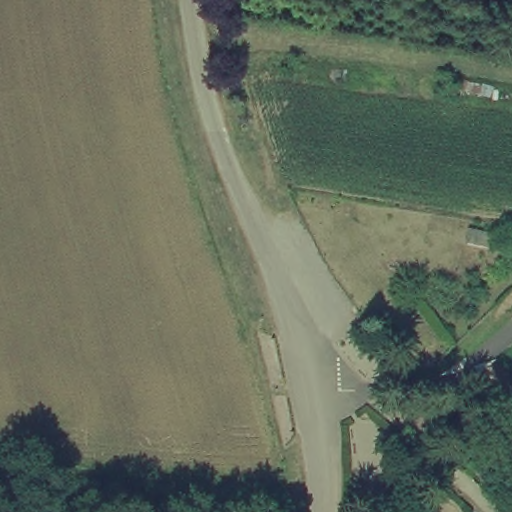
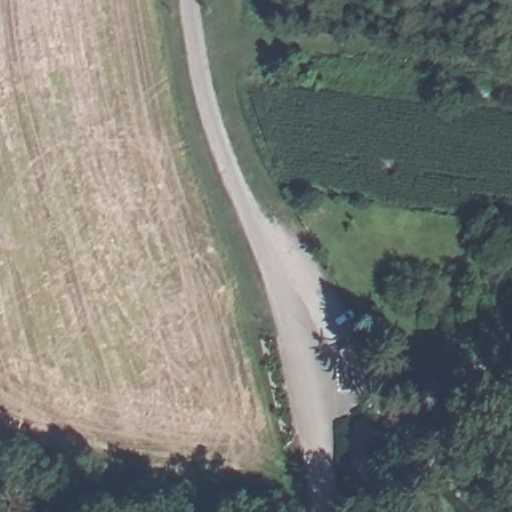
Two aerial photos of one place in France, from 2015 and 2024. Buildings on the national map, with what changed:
unchanged [(470,229),(497,235),(493,249),(466,244),(470,229)]

